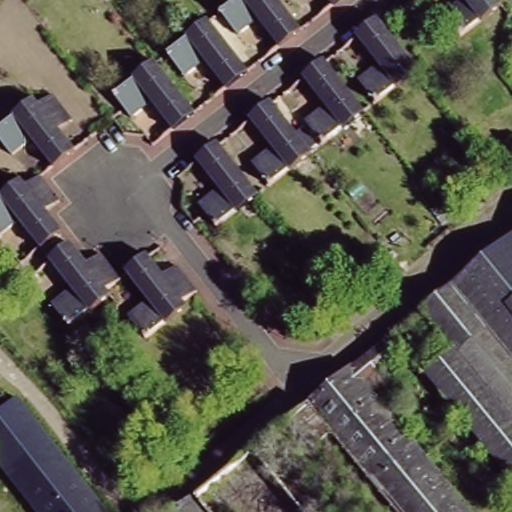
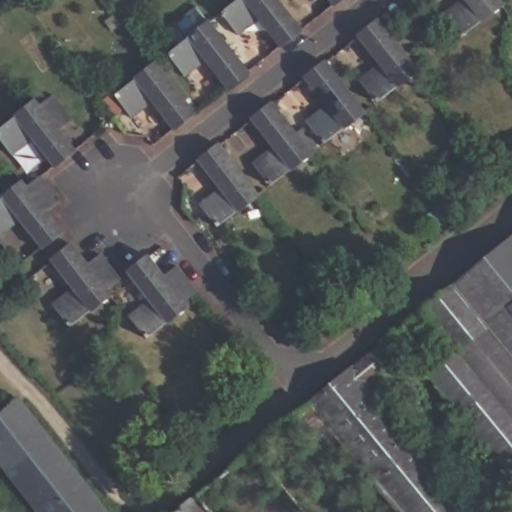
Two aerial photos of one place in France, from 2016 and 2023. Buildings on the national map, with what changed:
unchanged [(292,39),(282,48),(260,20),(240,36),(223,14),(241,0),(279,0),(303,31),(292,39)]
unchanged [(332,5),(328,0),(338,0),(332,5)]
unchanged [(480,18),(477,16),(457,31),(442,11),(456,0),(504,0),(480,18)]
unchanged [(228,84),(206,57),(185,73),(168,51),(210,19),(248,68),(228,84)]
unchanged [(369,29),(382,19),(420,69),(378,101),(361,79),(381,63),(360,36),(369,29)]
unchanged [(175,125),(174,126),(152,99),(132,114),(115,92),(155,61),(194,111),(175,125)]
unchanged [(316,70),(327,62),(365,111),(323,144),(306,122),(327,106),(305,78),(316,70)]
unchanged [(49,168),(27,139),(8,154),(0,144),(0,127),(33,101),(36,105),(50,94),(65,114),(70,120),(56,131),(71,151),(68,153),(49,168)]
unchanged [(272,104),(311,155),(310,155),(270,186),(253,164),(273,148),(252,120),(272,104)]
unchanged [(217,142),(256,192),(216,223),(199,201),(219,185),(197,157),(217,142)]
unchanged [(23,221),(0,238),(0,202),(25,182),(30,187),(42,176),(53,190),(57,196),(62,202),(48,213),(64,233),(44,249),(23,221)]
unchanged [(431,382),(461,357),(423,310),(512,237),(512,482),(431,382)]
unchanged [(104,285),(109,292),(67,324),(50,302),(71,285),(49,257),(70,241),(84,259),(85,259),(90,255),(97,249),(103,256),(117,275),(104,285)]
unchanged [(191,282),(195,287),(182,297),(186,302),(143,335),(126,313),(147,296),(126,268),(146,252),(160,269),(161,272),(175,261),(180,267),(186,275),(191,282)]
unchanged [(377,388),(478,512),(399,512),(312,405),(401,332),(402,331),(420,353),(377,388)]
unchanged [(17,395),(25,406),(101,505),(107,512),(29,512),(0,479),(0,410),(8,402),(17,395)]
unchanged [(309,512),(183,512),(257,450),(309,512)]

